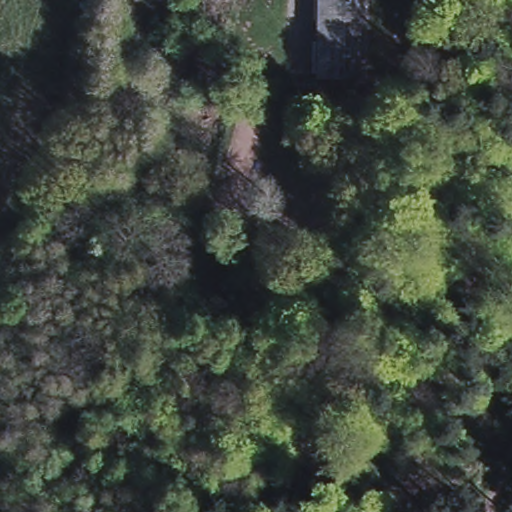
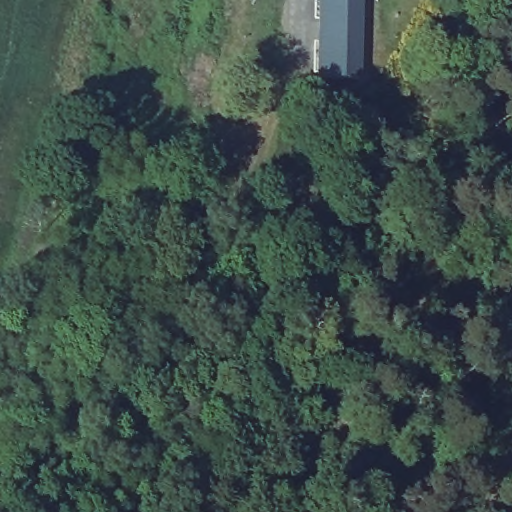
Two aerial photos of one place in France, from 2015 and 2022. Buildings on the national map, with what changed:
unchanged [(357,76),(319,76),(320,0),(359,0),(357,76)]

